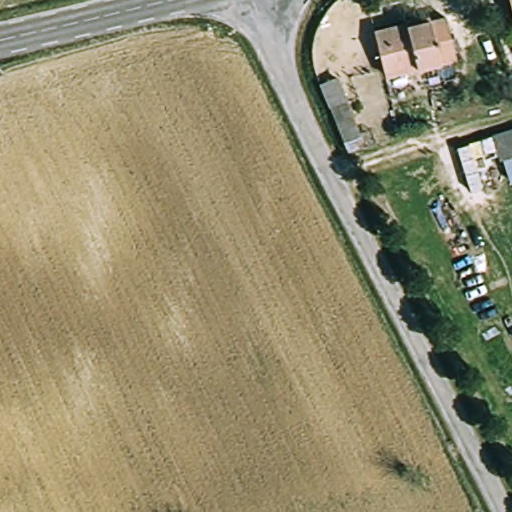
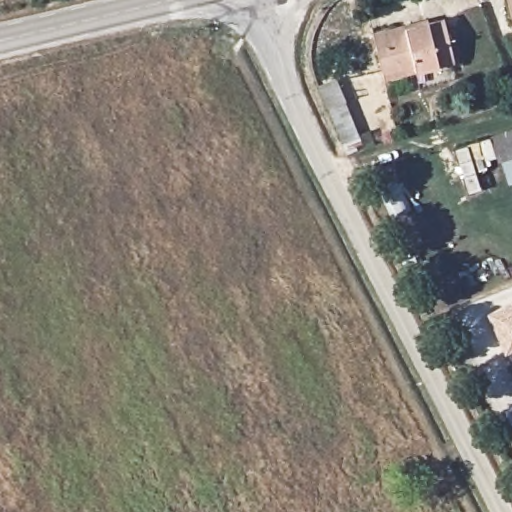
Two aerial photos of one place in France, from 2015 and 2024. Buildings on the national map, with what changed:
unchanged [(512,12),(509,0),(512,0),(512,12)]
unchanged [(405,33),(445,22),(457,62),(418,73),(416,65),(383,74),(372,35),(403,26),(405,33)]
unchanged [(338,102),(361,149),(346,152),(325,109),(338,102)]
unchanged [(492,137),(512,131),(512,160),(500,163),(492,137)]
new [(489,308),(512,300),(512,345),(505,348),(489,308)]

